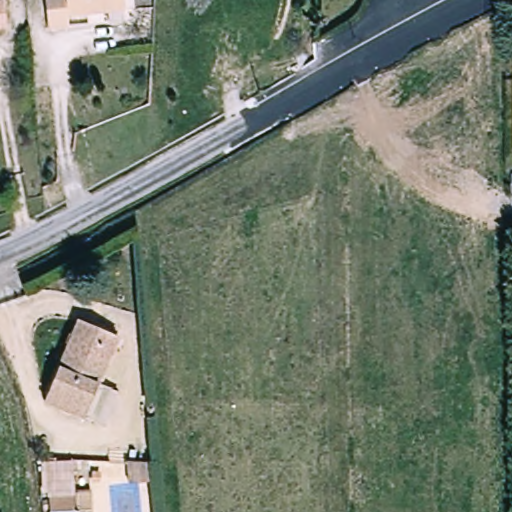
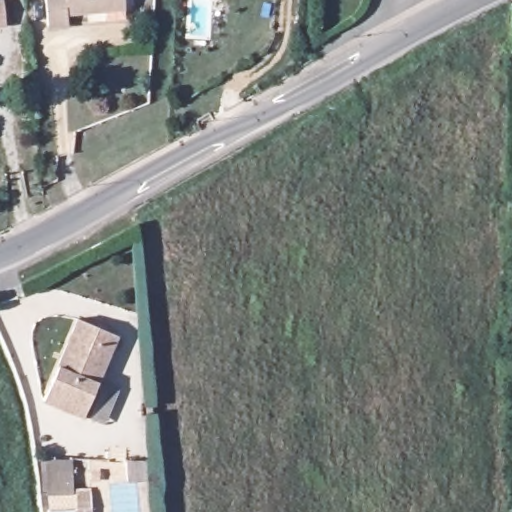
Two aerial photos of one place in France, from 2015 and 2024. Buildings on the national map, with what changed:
unchanged [(9,0),(12,25),(0,26),(0,0),(9,0)]
unchanged [(71,16),(73,30),(52,31),(50,0),(126,0),(127,14),(71,16)]
unchanged [(106,427),(86,420),(44,403),(75,325),(117,342),(99,387),(119,395),(106,427)]
unchanged [(50,492),(95,490),(96,512),(52,512),(50,492)]

